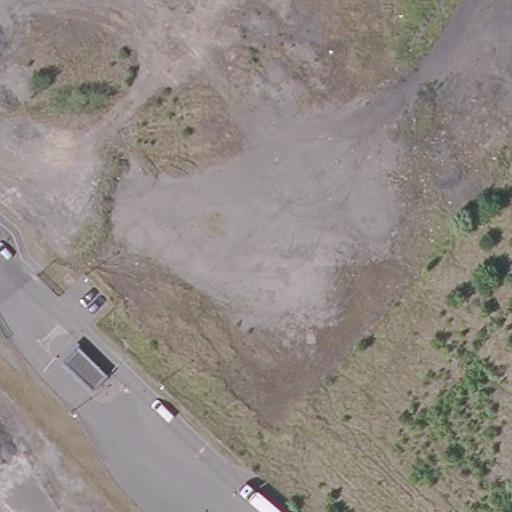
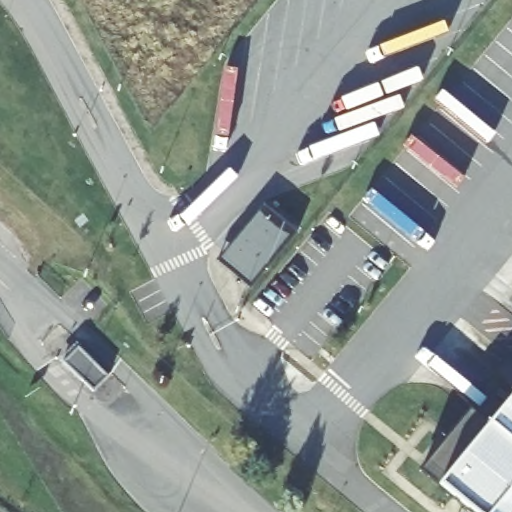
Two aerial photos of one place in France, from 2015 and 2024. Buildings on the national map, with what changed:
new [(263,203),(298,231),(258,279),(250,288),(216,260),(224,251),(263,203)]
unchanged [(64,362),(79,348),(108,376),(94,391),(64,362)]
new [(512,382),(512,512),(465,512),(466,511),(431,480),(512,382)]

